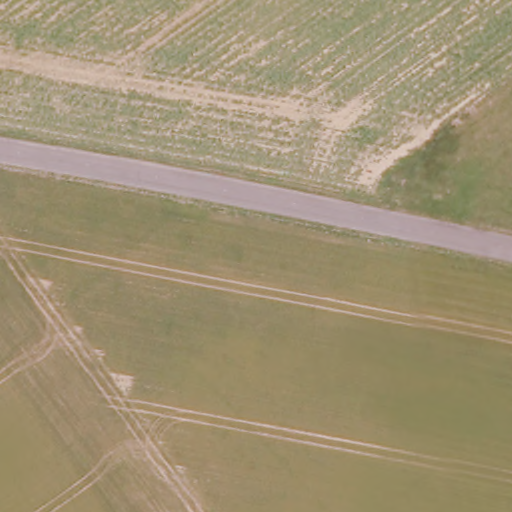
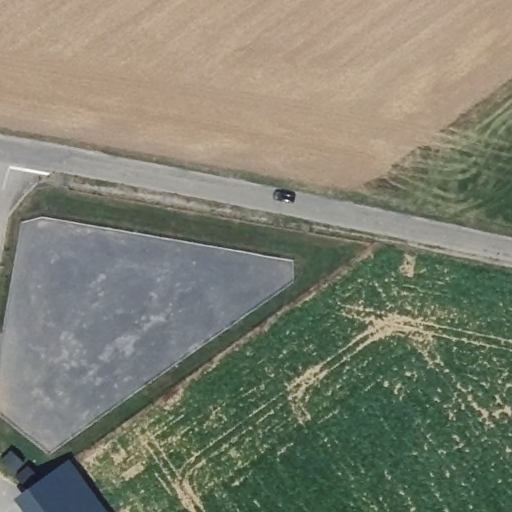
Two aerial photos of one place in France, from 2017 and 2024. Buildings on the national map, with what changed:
new [(75,465),(108,512),(47,512),(35,494),(75,465)]
new [(35,494),(47,512),(28,512),(22,503),(35,494)]

